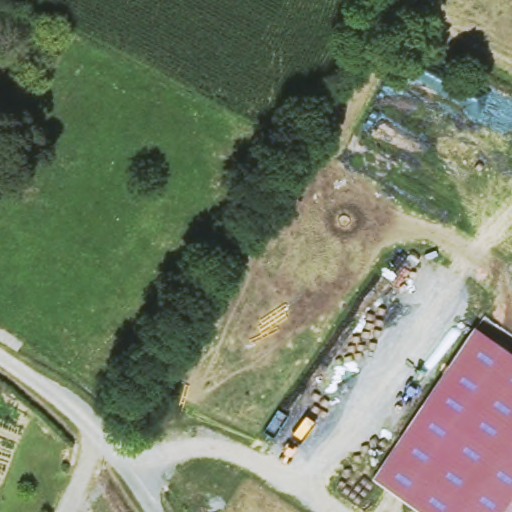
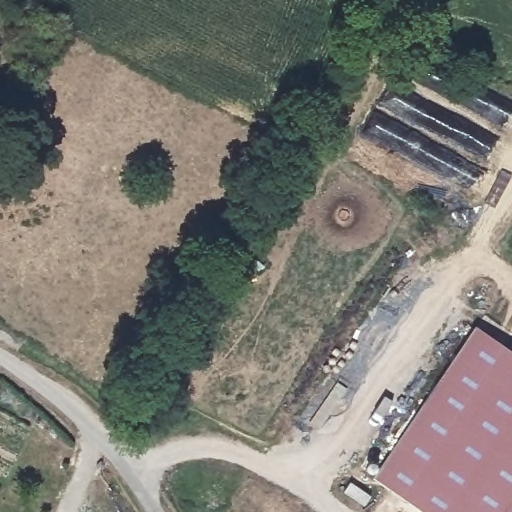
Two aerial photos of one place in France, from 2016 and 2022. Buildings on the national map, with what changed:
unchanged [(512,353),(512,512),(422,512),(372,478),(474,327),(512,353)]

